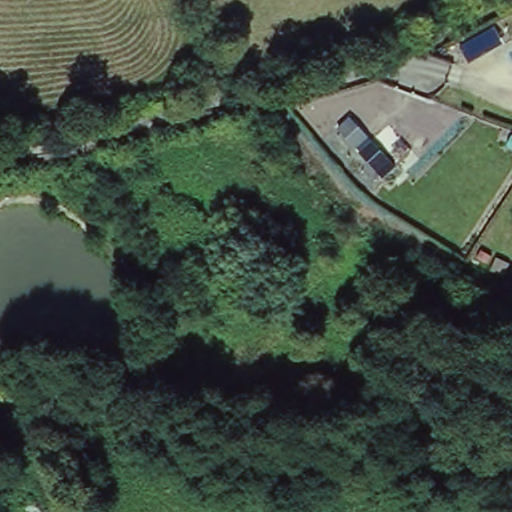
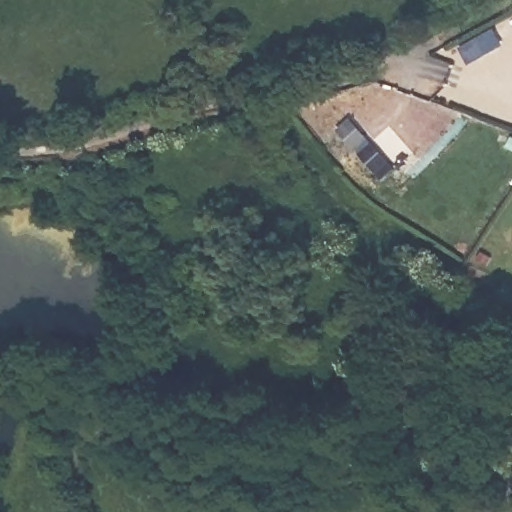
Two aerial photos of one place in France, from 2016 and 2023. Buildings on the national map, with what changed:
unchanged [(468,64),(458,45),(493,26),(503,45),(468,64)]
unchanged [(381,179),(335,129),(350,115),(396,165),(381,179)]

